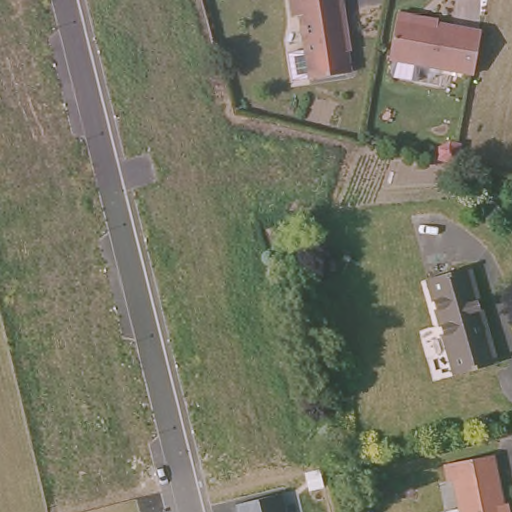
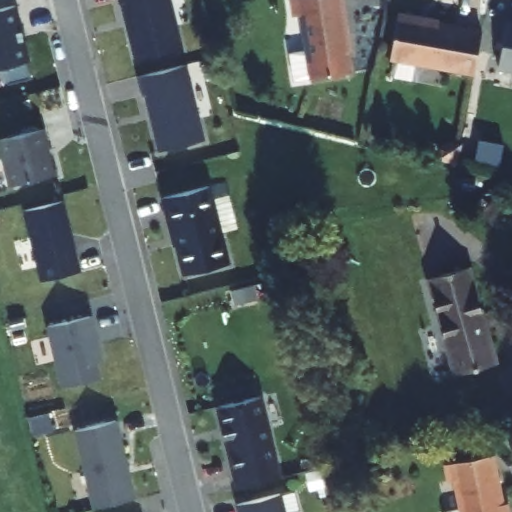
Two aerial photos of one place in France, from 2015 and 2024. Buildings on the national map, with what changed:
new [(14,0),(27,54),(25,54),(28,70),(5,76),(2,60),(0,60),(0,2),(10,0),(14,0)]
new [(140,51),(128,0),(174,0),(185,41),(140,51)]
unchanged [(346,0),(352,45),(349,45),(353,77),(313,81),(303,19),(297,19),(296,1),(304,0),(346,0)]
unchanged [(395,59),(403,14),(422,17),(420,26),(439,29),(440,24),(487,34),(480,74),(395,59)]
new [(503,60),(512,15),(512,63),(503,60)]
new [(163,144),(150,87),(145,89),(140,69),(188,58),(207,133),(163,144)]
new [(8,186),(0,152),(0,141),(45,129),(57,173),(8,186)]
new [(209,178),(228,255),(185,266),(170,206),(167,207),(162,189),(209,178)]
new [(61,193),(78,264),(40,273),(22,203),(61,193)]
unchanged [(465,258),(480,308),(485,307),(502,374),(458,385),(428,267),(465,258)]
new [(87,309),(94,339),(88,340),(96,371),(58,380),(43,319),(87,309)]
new [(256,391),(275,473),(232,483),(213,401),(256,391)]
new [(137,497),(93,508),(73,431),(117,420),(137,497)]
unchanged [(494,458),(508,512),(462,512),(455,485),(448,486),(444,471),(494,458)]
unchanged [(282,492),(287,512),(236,512),(234,502),(282,492)]

